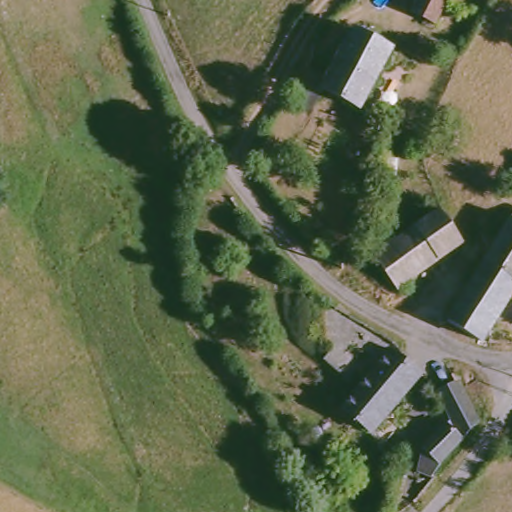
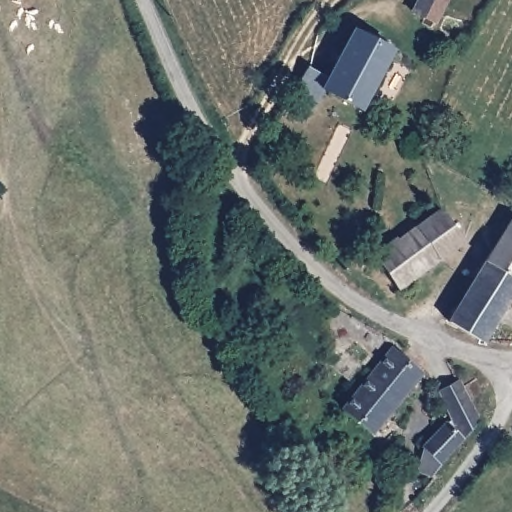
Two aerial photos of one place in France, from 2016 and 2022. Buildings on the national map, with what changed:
unchanged [(443,26),(424,16),(431,0),(454,0),(443,26)]
unchanged [(314,64),(330,75),(362,28),(398,52),(366,105),(361,108),(330,87),(314,108),(293,94),(314,64)]
unchanged [(448,213),(467,247),(424,275),(404,242),(447,211),(448,213)]
unchanged [(452,322),(512,230),(512,298),(480,346),(472,342),(452,322)]
unchanged [(378,252),(401,237),(404,242),(424,275),(401,289),(378,252)]
unchanged [(425,375),(381,437),(354,418),(397,353),(425,375)]
unchanged [(339,356),(364,376),(355,386),(331,367),(339,356)]
unchanged [(467,385),(484,422),(472,435),(462,426),(449,395),(467,385)]
unchanged [(470,437),(442,479),(432,475),(432,448),(447,418),(470,437)]

